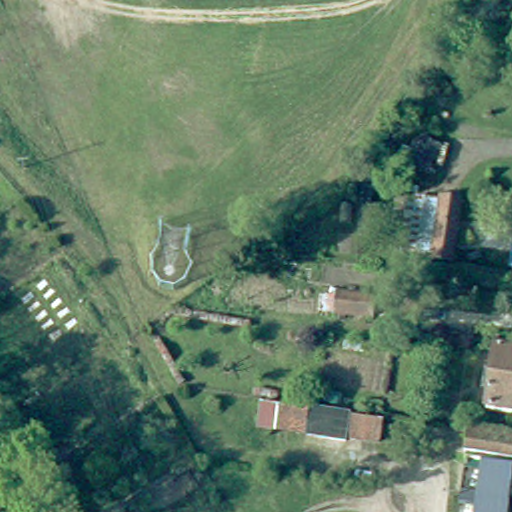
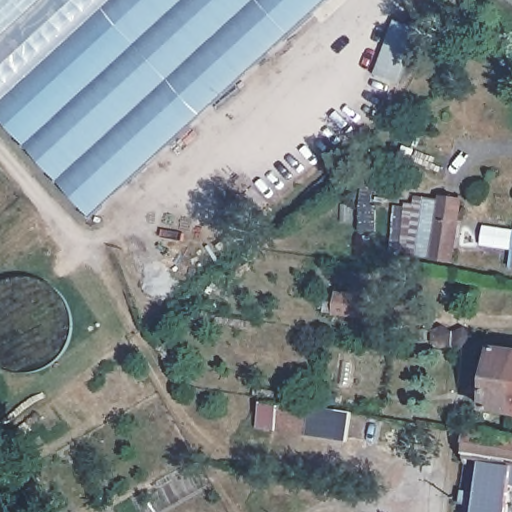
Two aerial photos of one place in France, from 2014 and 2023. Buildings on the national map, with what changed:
new [(0,106),(0,0),(116,0),(0,106)]
new [(88,217),(0,119),(0,106),(116,0),(327,0),(88,217)]
unchanged [(512,7),(502,0),(512,0),(512,7)]
unchanged [(406,193),(465,204),(453,261),(396,252),(406,193)]
unchanged [(337,288),(386,294),(385,301),(385,315),(336,307),(336,296),(337,288)]
unchanged [(482,405),(492,346),(512,349),(512,389),(510,409),(482,405)]
unchanged [(512,389),(512,409),(510,409),(512,389)]
unchanged [(380,442),(335,437),(261,426),(265,405),(337,416),(383,423),(380,442)]
unchanged [(512,466),(474,460),(455,457),(462,427),(512,436),(512,466)]
unchanged [(512,466),(512,487),(505,486),(501,512),(467,512),(474,460),(512,466)]

